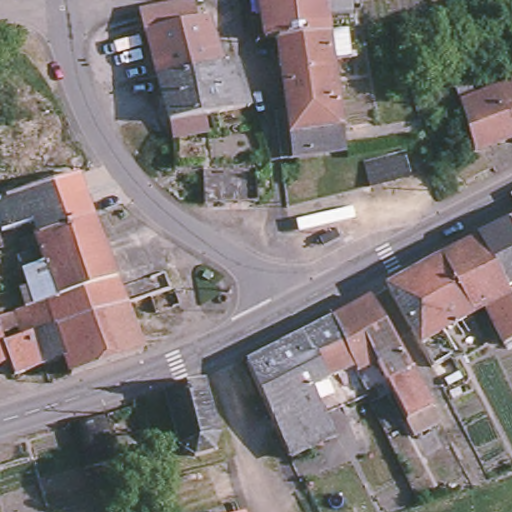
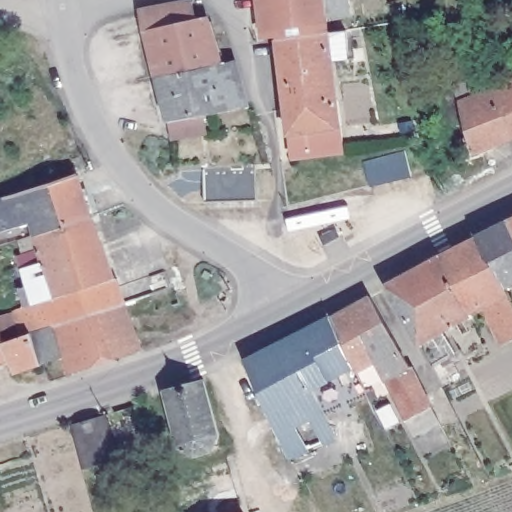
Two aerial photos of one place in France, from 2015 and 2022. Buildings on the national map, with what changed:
unchanged [(218,59),(153,71),(142,26),(140,26),(135,4),(155,0),(189,0),(193,15),(203,13),(208,29),(218,59)]
unchanged [(323,17),(323,30),(272,37),(260,39),(255,0),(345,0),(347,14),(323,17)]
unchanged [(272,37),(323,30),(324,33),(342,30),(347,58),(330,61),(327,61),(328,72),(278,78),(272,37)]
unchanged [(245,102),(165,117),(153,71),(218,59),(230,55),(245,102)]
unchanged [(285,133),(278,78),(328,72),(329,99),(335,99),(337,125),(285,133)]
unchanged [(460,103),(455,87),(467,82),(472,98),(512,81),(512,139),(474,154),(460,103)]
unchanged [(339,148),(287,153),(285,133),(337,125),(339,148)]
unchanged [(363,163),(405,152),(412,175),(370,186),(363,163)]
unchanged [(205,202),(203,167),(257,164),(257,201),(205,202)]
unchanged [(7,198),(78,174),(93,216),(38,234),(35,223),(2,232),(0,227),(0,199),(7,198)]
unchanged [(93,216),(108,254),(50,274),(37,235),(38,234),(93,216)]
unchanged [(478,233),(512,216),(512,279),(505,283),(478,233)]
unchanged [(470,309),(441,252),(478,233),(505,283),(508,290),(485,302),(470,309)]
unchanged [(35,304),(27,280),(18,255),(24,253),(20,240),(37,235),(50,274),(108,254),(117,278),(48,300),(35,304)]
unchanged [(431,361),(417,336),(387,281),(441,252),(470,309),(442,324),(457,346),(431,361)]
unchanged [(72,373),(66,356),(43,364),(42,364),(32,332),(4,342),(0,333),(0,315),(21,308),(12,285),(27,280),(35,304),(48,300),(117,278),(126,303),(143,350),(72,373)]
unchanged [(512,296),(512,335),(503,340),(485,302),(508,290),(512,296)]
unchanged [(328,317),(366,296),(378,318),(338,340),(328,317)]
unchanged [(283,340),(328,317),(338,340),(350,366),(321,378),(322,381),(318,382),(317,380),(305,385),(283,340)]
unchanged [(372,361),(353,372),(350,366),(338,340),(378,318),(406,367),(381,381),(372,361)]
unchanged [(4,342),(32,332),(42,364),(15,373),(8,358),(0,362),(0,333),(4,342)]
unchanged [(345,429),(330,435),(332,437),(285,455),(242,361),(283,340),(305,385),(320,412),(335,406),(345,429)]
unchanged [(406,367),(427,407),(402,421),(381,381),(406,367)]
unchanged [(199,374),(215,429),(207,446),(190,450),(176,440),(161,384),(199,374)]
unchanged [(66,420),(102,409),(115,454),(79,465),(66,420)]
unchanged [(247,512),(235,512),(247,508),(247,512)]

